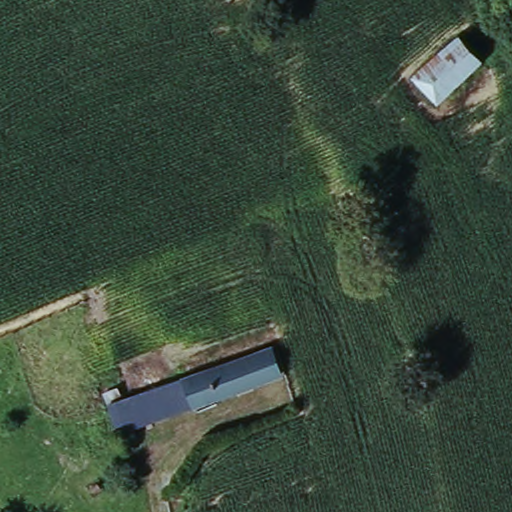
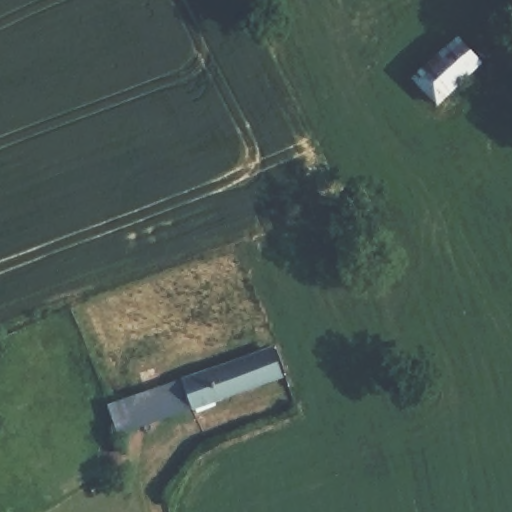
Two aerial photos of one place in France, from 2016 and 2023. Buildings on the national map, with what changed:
unchanged [(456,31),(479,59),(432,97),(411,71),(456,31)]
unchanged [(116,435),(104,403),(273,347),(285,378),(116,435)]

